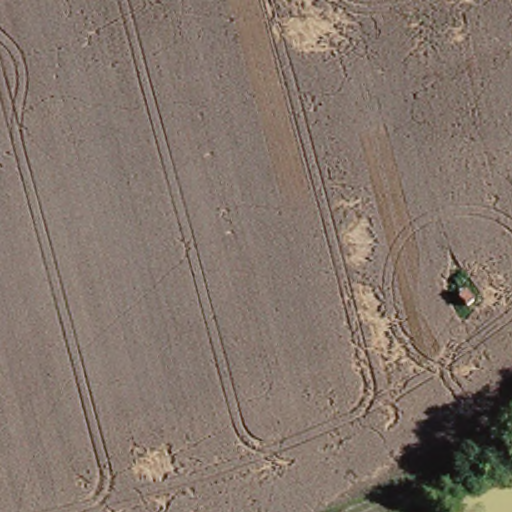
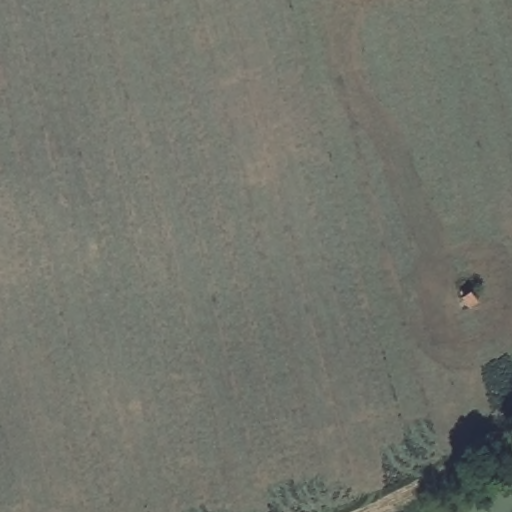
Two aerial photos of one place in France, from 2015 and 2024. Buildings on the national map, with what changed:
unchanged [(453,307),(447,300),(455,291),(461,299),(453,307)]

